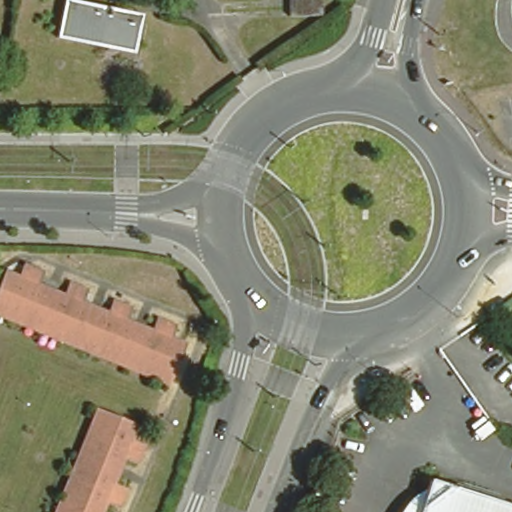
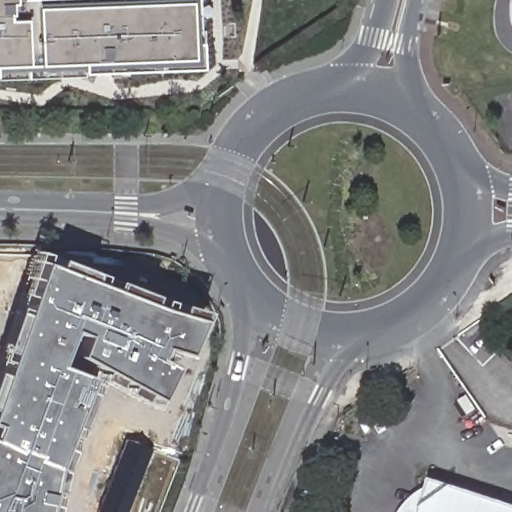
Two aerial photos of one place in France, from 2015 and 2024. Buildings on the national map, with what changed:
new [(145,0),(189,0),(191,65),(0,72),(0,0),(15,0),(16,6),(145,0)]
demolished [(321,0),(321,12),(290,13),(289,0),(321,0)]
demolished [(130,55),(54,39),(61,2),(139,18),(130,55)]
new [(57,260),(101,277),(98,284),(111,289),(114,282),(151,297),(149,305),(157,309),(160,300),(169,302),(166,310),(177,313),(179,306),(203,313),(184,356),(160,349),(155,359),(172,368),(151,409),(98,379),(61,471),(53,512),(4,512),(6,501),(0,499),(0,353),(35,252),(57,260)]
demolished [(123,364),(100,354),(80,346),(56,337),(35,328),(12,319),(1,315),(0,315),(0,286),(6,271),(21,277),(26,264),(43,271),(38,284),(64,295),(69,282),(88,290),(83,302),(107,312),(112,300),(131,307),(126,320),(151,330),(156,318),(175,326),(170,338),(183,343),(168,381),(145,372),(123,364)]
demolished [(69,488),(73,479),(86,444),(88,440),(100,410),(136,425),(129,441),(143,446),(136,464),(122,458),(111,484),(126,490),(119,508),(105,502),(101,512),(60,512),(69,488)]
new [(126,438),(153,448),(128,512),(98,512),(126,438)]
unchanged [(428,496),(431,489),(433,481),(512,506),(512,512),(423,512),(428,496)]
unchanged [(405,512),(407,508),(411,504),(415,501),(418,497),(422,494),(426,491),(431,489),(428,496),(423,512),(404,512),(405,512)]

